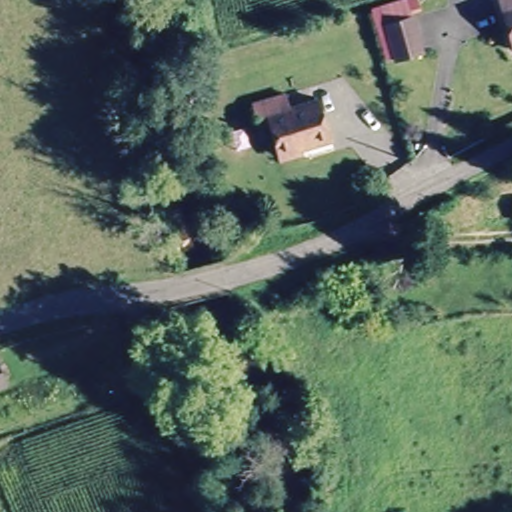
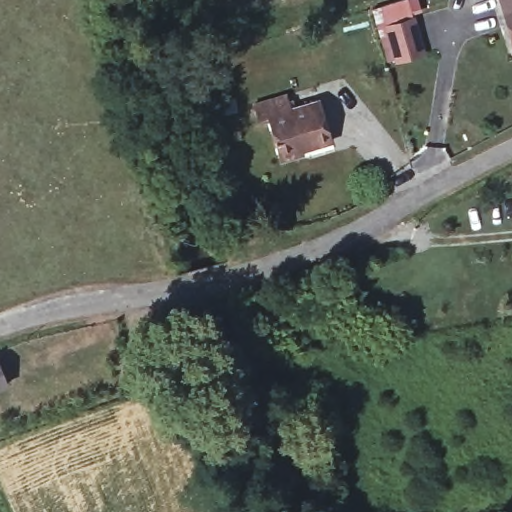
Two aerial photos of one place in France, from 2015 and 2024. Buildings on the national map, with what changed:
unchanged [(385,24),(380,5),(398,0),(408,0),(412,17),(420,53),(395,60),(385,24)]
unchanged [(496,0),(512,0),(512,54),(510,54),(496,0)]
unchanged [(287,96),(292,112),(320,104),(331,145),(278,159),(267,119),(258,121),(253,106),(287,96)]
unchanged [(6,384),(0,387),(0,369),(6,384)]

